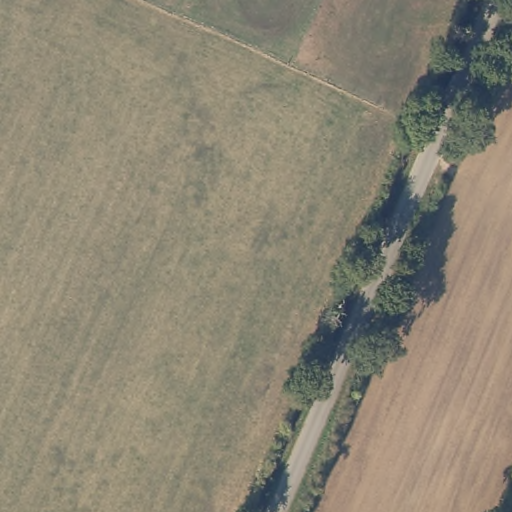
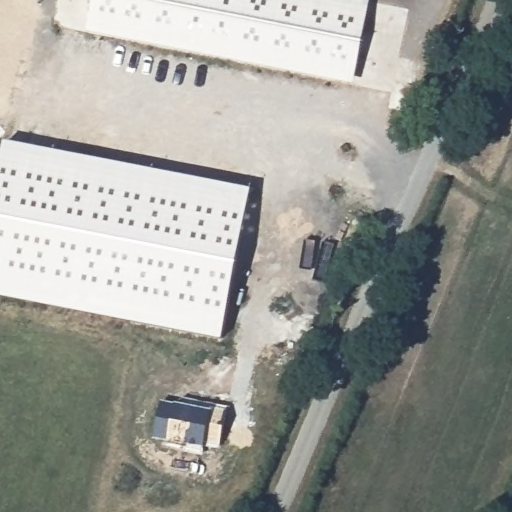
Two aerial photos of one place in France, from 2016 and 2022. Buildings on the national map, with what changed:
new [(355,84),(89,31),(94,0),(370,0),(355,84)]
new [(0,161),(4,141),(252,189),(222,341),(0,298),(0,161)]

